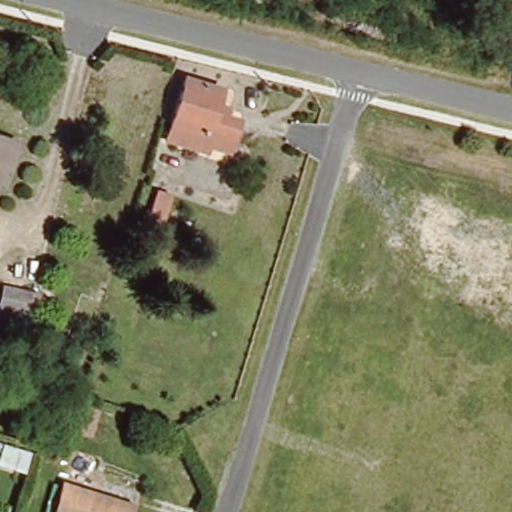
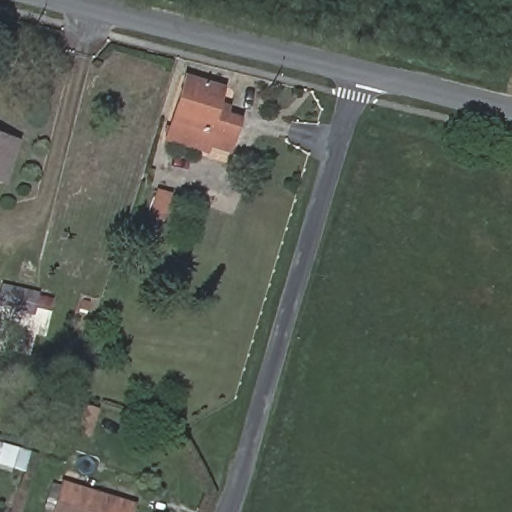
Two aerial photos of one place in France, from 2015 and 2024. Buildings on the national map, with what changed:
unchanged [(198,154),(166,145),(188,72),(222,83),(213,110),(234,116),(225,148),(221,161),(198,154)]
unchanged [(0,134),(16,139),(1,181),(0,181),(0,134)]
unchanged [(0,290),(1,283),(40,293),(30,330),(0,327),(0,290)]
unchanged [(87,409),(79,436),(56,429),(65,402),(87,409)]
unchanged [(16,471),(0,467),(0,452),(19,457),(16,471)]
unchanged [(61,481),(95,491),(129,501),(126,512),(52,512),(61,481)]

